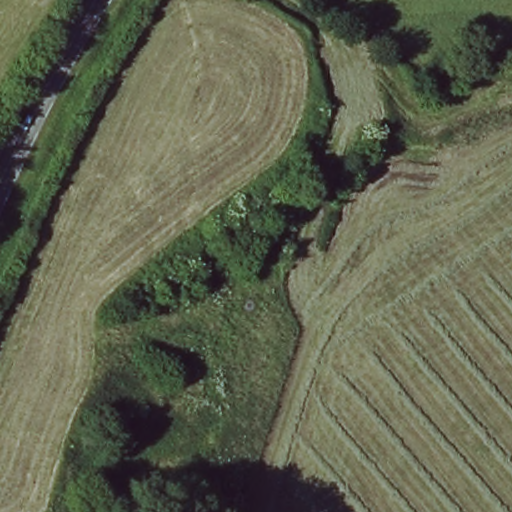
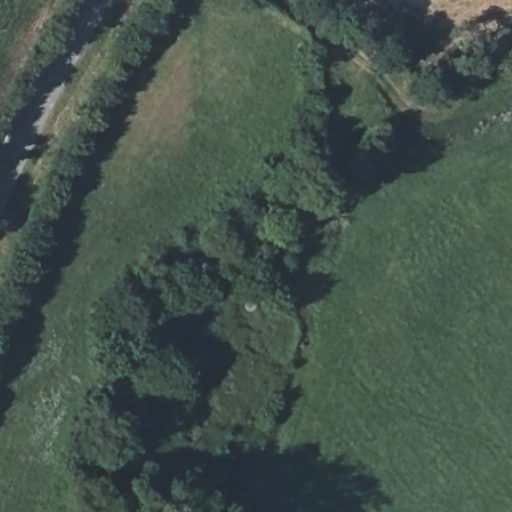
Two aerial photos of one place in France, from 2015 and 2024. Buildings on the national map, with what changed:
unchanged [(221,263),(218,258),(226,255),(228,260),(221,263)]
unchanged [(248,300),(251,302),(252,304),(253,306),(253,308),(252,311),(251,313),(249,315),(246,315),(244,315),(241,315),(239,312),(238,310),(238,307),(238,305),(240,302),(242,301),(244,300),(246,300),(248,300)]

